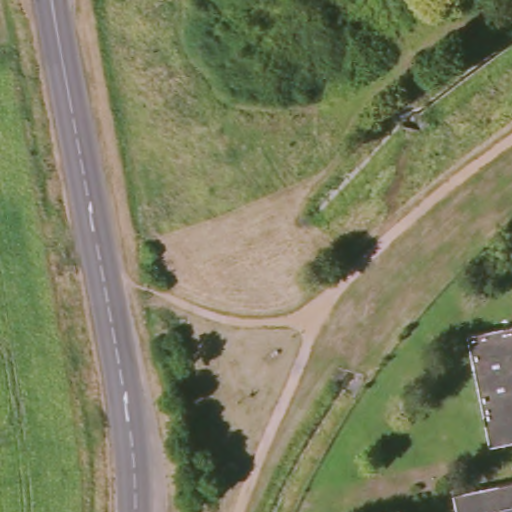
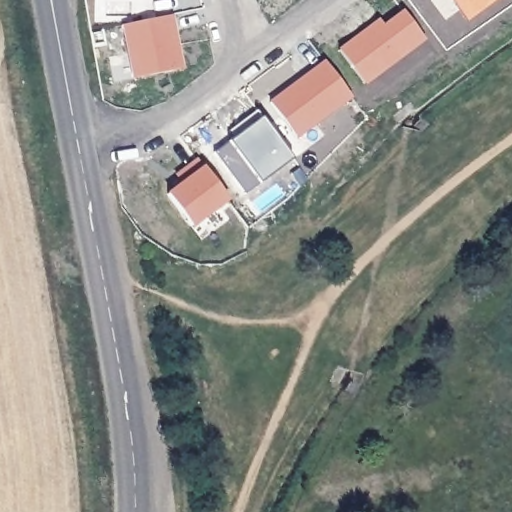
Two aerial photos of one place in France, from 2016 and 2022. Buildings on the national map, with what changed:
new [(456,0),(495,0),(472,19),(456,0)]
new [(367,85),(335,50),(381,14),(385,20),(405,10),(427,40),(367,85)]
new [(185,68),(133,80),(122,25),(173,14),(185,68)]
new [(300,138),(270,97),(323,57),(355,100),(300,138)]
new [(247,193),(215,150),(265,115),(295,156),(247,193)]
new [(167,192),(180,184),(172,172),(198,155),(233,200),(195,227),(167,192)]
unchanged [(470,335),(512,326),(512,442),(492,446),(470,335)]
unchanged [(512,484),(512,512),(459,512),(456,495),(512,484)]

